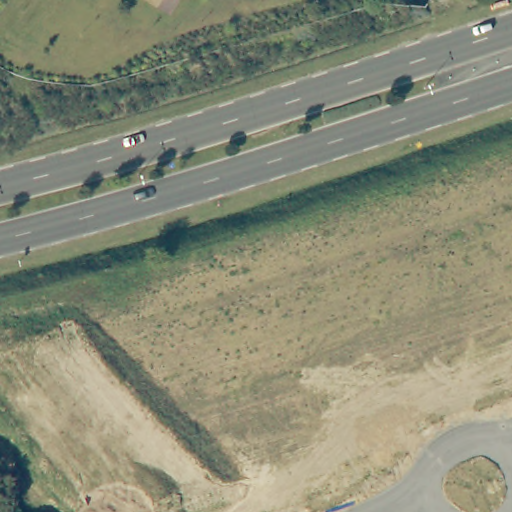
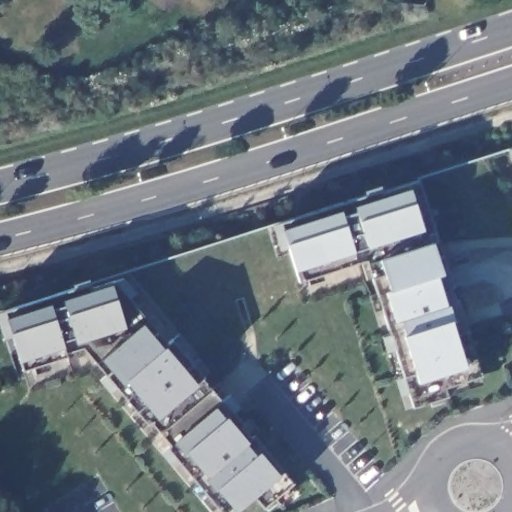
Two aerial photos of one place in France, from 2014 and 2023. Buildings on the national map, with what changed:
new [(512,147),(512,163),(508,148),(512,147)]
new [(442,253),(466,330),(481,375),(483,384),(447,395),(414,407),(410,392),(400,394),(395,378),(403,375),(395,347),(386,349),(382,335),(390,333),(384,308),(375,310),(370,295),(377,294),(372,277),(366,279),(359,262),(299,280),(287,246),(279,249),(271,223),(419,179),(442,253)]
new [(11,335),(3,337),(0,328),(0,311),(121,276),(134,291),(174,340),(193,363),(202,378),(221,399),(229,393),(240,406),(233,411),(293,483),(263,508),(253,496),(237,511),(232,506),(227,512),(222,512),(218,506),(211,512),(201,501),(208,495),(177,458),(171,465),(160,452),(171,444),(149,421),(146,423),(141,428),(130,415),(136,409),(117,386),(110,391),(98,378),(104,372),(88,353),(67,360),(66,355),(46,362),(49,370),(35,374),(29,367),(23,369),(11,335)]

